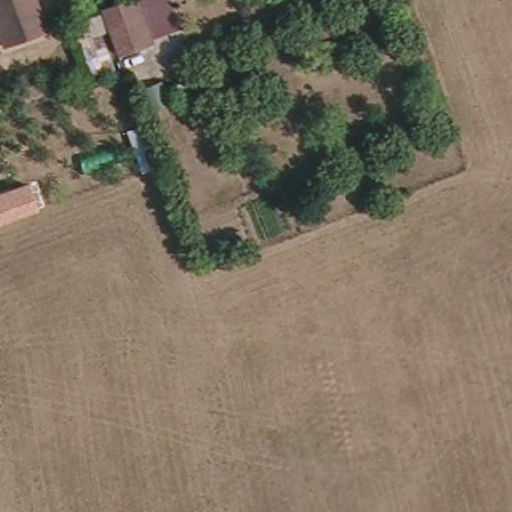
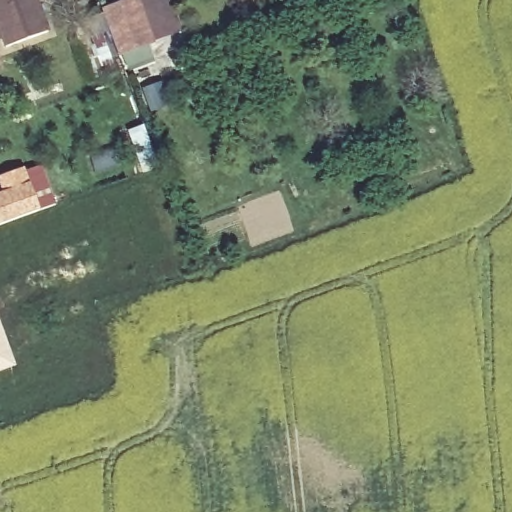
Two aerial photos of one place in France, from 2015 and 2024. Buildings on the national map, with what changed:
unchanged [(45,35),(5,50),(0,35),(0,0),(33,0),(45,35)]
unchanged [(125,0),(142,0),(155,37),(121,50),(115,33),(106,7),(125,0)]
unchanged [(330,37),(312,45),(301,22),(320,14),(330,37)]
unchanged [(162,106),(144,112),(137,94),(156,87),(162,106)]
unchanged [(0,224),(0,193),(27,183),(37,211),(0,224)]
new [(0,367),(0,322),(15,362),(0,367)]

